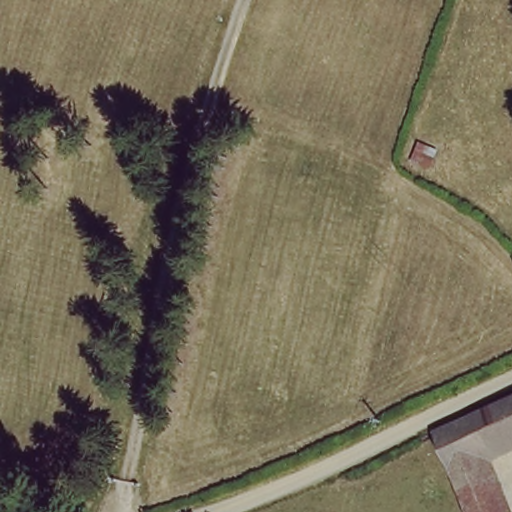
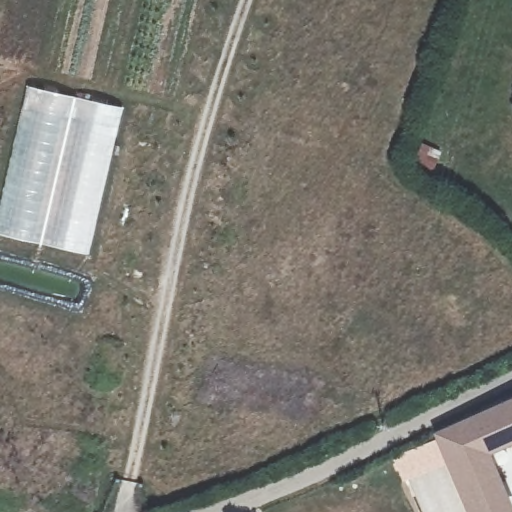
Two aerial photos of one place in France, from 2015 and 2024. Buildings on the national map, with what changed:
new [(124,106),(90,254),(0,234),(0,196),(26,84),(124,106)]
unchanged [(486,453),(512,508),(512,512),(475,512),(438,432),(512,400),(512,441),(486,453)]

